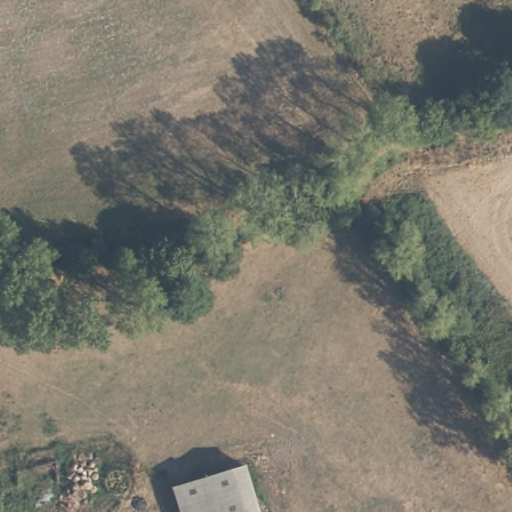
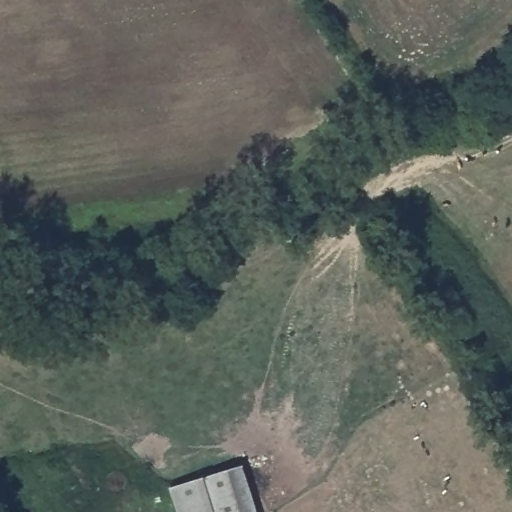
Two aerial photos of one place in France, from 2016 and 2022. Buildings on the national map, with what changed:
unchanged [(229,468),(243,512),(178,512),(170,488),(229,468)]

